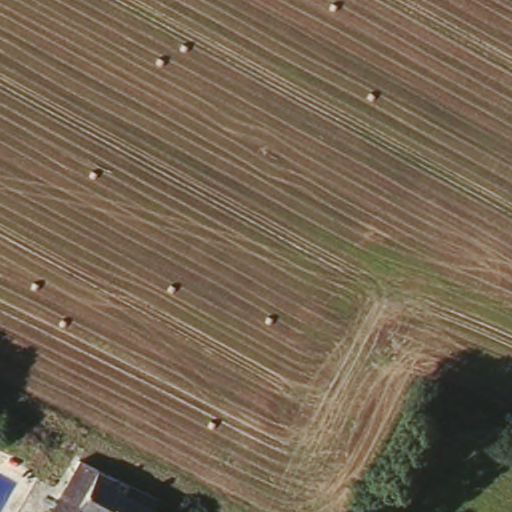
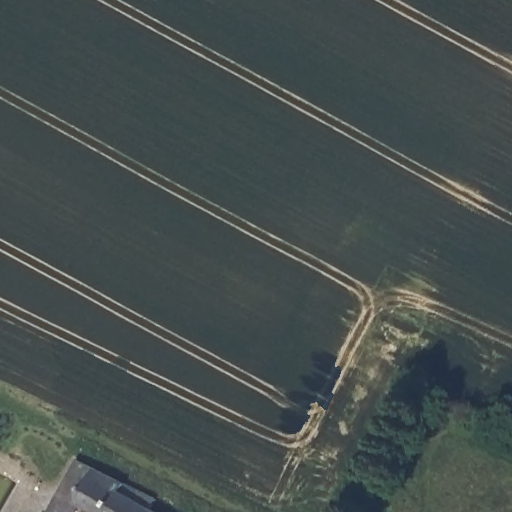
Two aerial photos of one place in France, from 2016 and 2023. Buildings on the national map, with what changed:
unchanged [(78,507),(75,512),(47,512),(79,457),(156,501),(151,512),(87,512),(78,507)]

